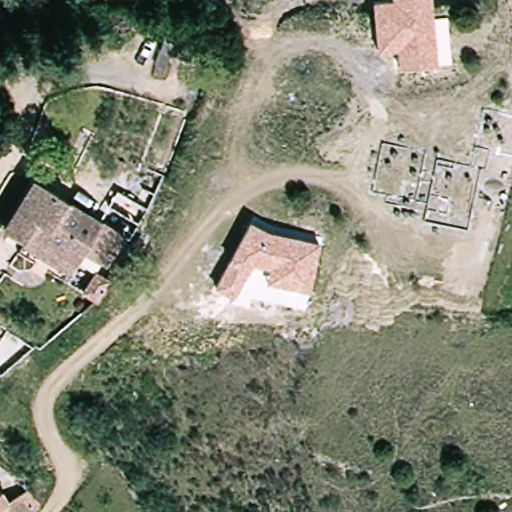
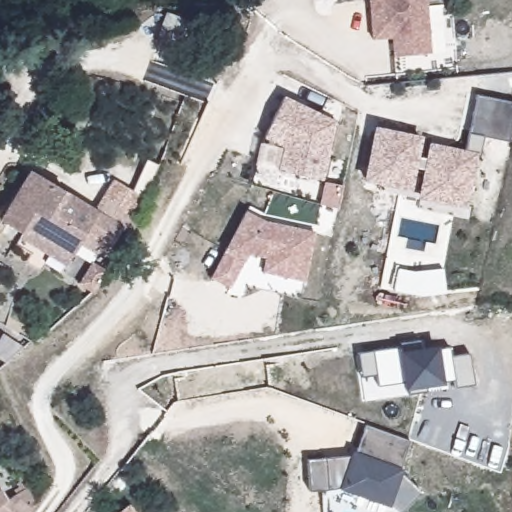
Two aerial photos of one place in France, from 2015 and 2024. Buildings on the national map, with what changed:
unchanged [(433,54),(394,57),(392,39),(374,41),(370,0),(427,0),(433,54)]
unchanged [(166,13),(194,24),(184,52),(156,41),(166,13)]
new [(377,127),(424,137),(420,158),(428,159),(432,143),(468,151),(479,94),(512,101),(512,137),(511,142),(486,135),(482,155),(478,154),(468,208),(421,199),(426,169),(417,167),(413,190),(367,182),(377,127)]
new [(284,147),(266,137),(287,96),(339,122),(324,180),(281,170),(284,147)]
unchanged [(13,231),(0,224),(0,201),(20,168),(110,223),(99,241),(93,251),(69,236),(60,252),(55,260),(12,233),(13,231)]
new [(115,179),(146,198),(133,218),(141,222),(133,236),(110,223),(95,214),(115,179)]
unchanged [(306,282),(263,273),(266,258),(250,254),(231,287),(211,276),(246,211),(268,221),(316,231),(306,282)]
unchanged [(96,267),(83,286),(70,278),(83,258),(96,267)]
new [(402,347),(402,343),(420,340),(421,349),(438,346),(439,350),(449,347),(451,356),(470,353),(475,384),(456,387),(454,380),(444,381),(444,385),(427,387),(428,392),(365,402),(361,377),(359,354),(402,347)]
new [(369,426),(413,443),(402,473),(424,495),(408,512),(363,512),(330,499),(329,491),(311,493),(309,460),(358,457),(369,426)]
unchanged [(8,501),(28,489),(38,505),(32,512),(0,512),(0,491),(1,490),(8,501)]
new [(137,512),(120,512),(130,504),(137,512)]

